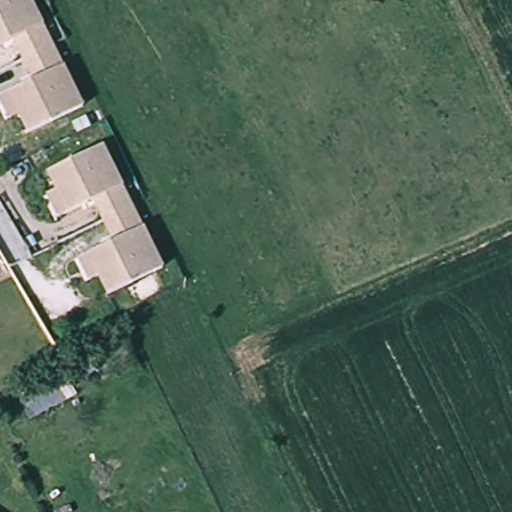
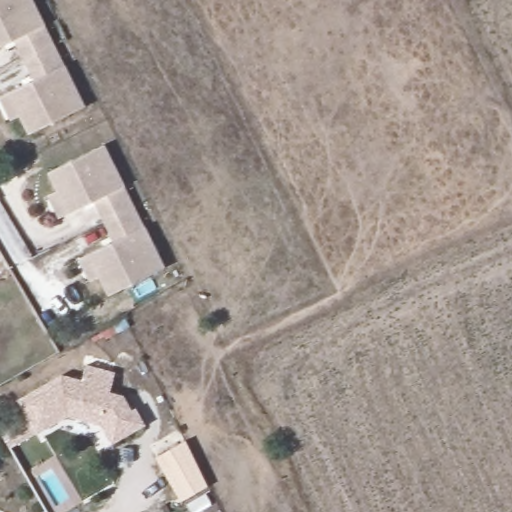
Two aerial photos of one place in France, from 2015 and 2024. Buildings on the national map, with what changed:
unchanged [(58,45),(29,60),(19,40),(0,50),(0,0),(34,0),(58,45)]
unchanged [(5,98),(14,93),(39,80),(29,60),(58,45),(89,106),(35,135),(26,116),(17,120),(5,98)]
unchanged [(56,196),(65,191),(55,172),(109,145),(141,205),(112,220),(102,200),(76,213),(67,218),(56,196)]
unchanged [(88,258),(97,253),(122,240),(112,220),(141,205),(172,266),(119,294),(109,275),(100,280),(88,258)]
new [(60,374),(81,380),(85,364),(113,371),(108,391),(123,394),(131,410),(135,409),(143,425),(110,443),(100,423),(65,414),(9,447),(0,433),(0,429),(25,414),(16,400),(60,374)]
new [(187,442),(209,486),(180,502),(157,457),(187,442)]

